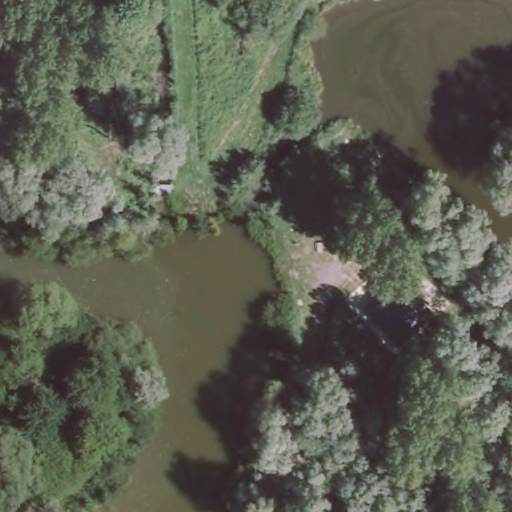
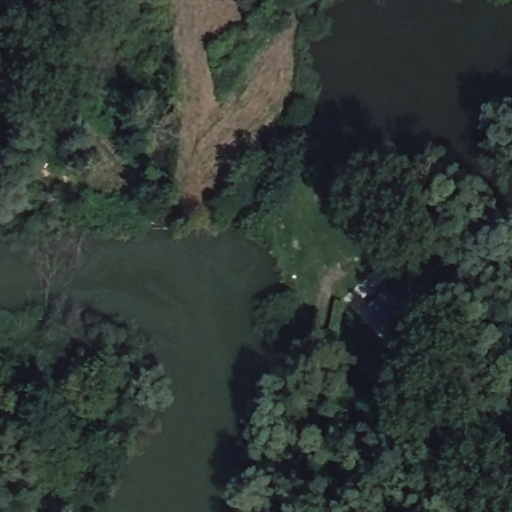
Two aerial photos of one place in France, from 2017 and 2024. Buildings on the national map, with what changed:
unchanged [(397,274),(434,314),(401,343),(365,303),(397,274)]

